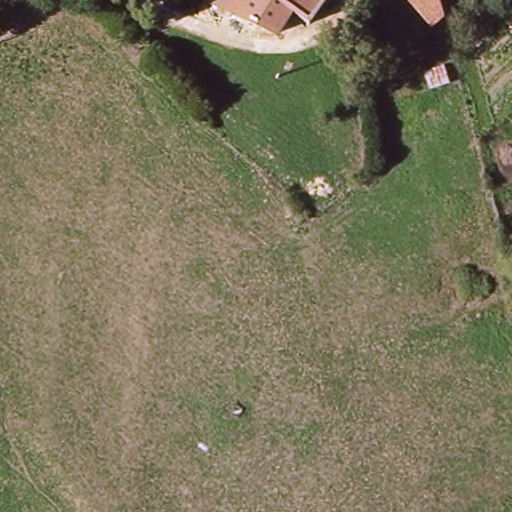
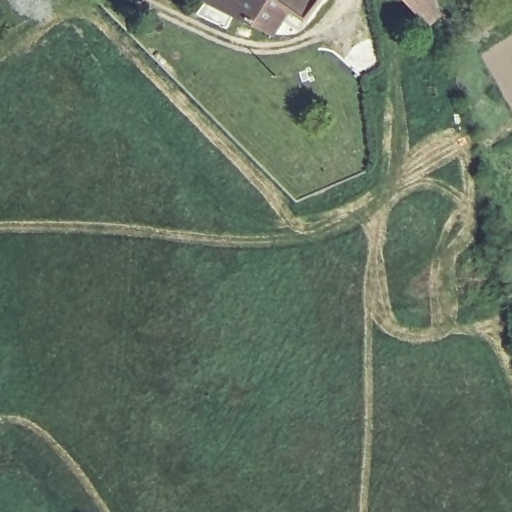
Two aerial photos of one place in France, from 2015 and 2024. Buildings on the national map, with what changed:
unchanged [(292,23),(277,46),(204,6),(209,0),(330,0),(307,31),(292,23)]
unchanged [(412,10),(403,0),(427,0),(436,26),(430,29),(412,10)]

